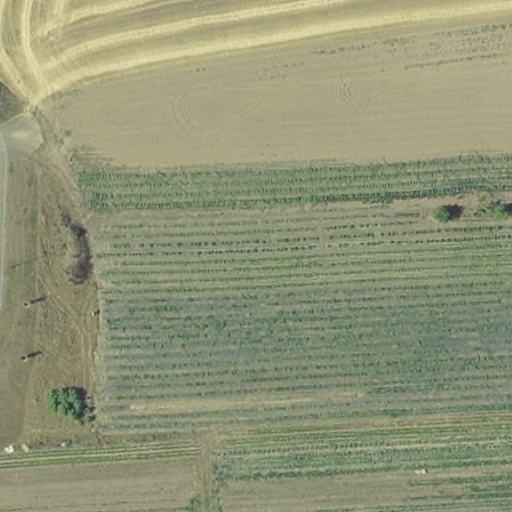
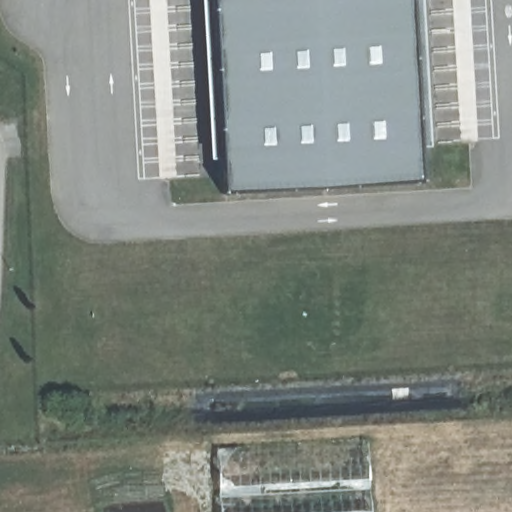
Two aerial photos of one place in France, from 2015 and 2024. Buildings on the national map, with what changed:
new [(222,193),(211,0),(412,0),(422,182),(222,193)]
new [(370,512),(220,512),(217,448),(367,440),(370,512)]
new [(190,497),(0,509),(0,465),(187,453),(190,497)]

